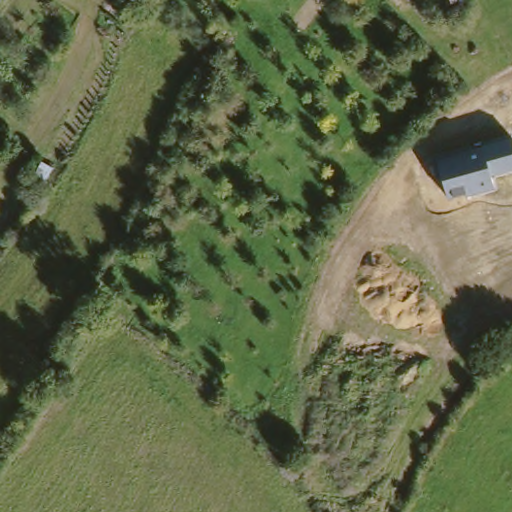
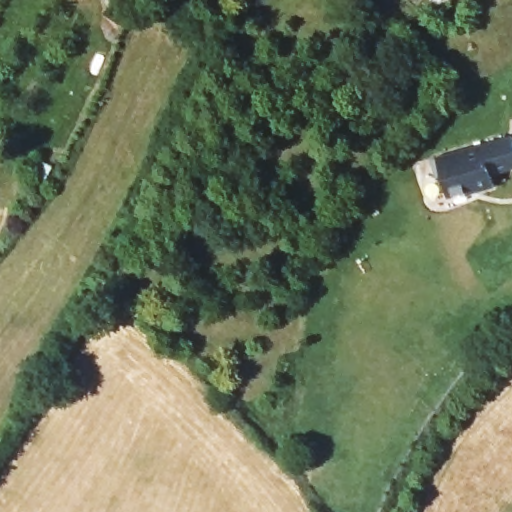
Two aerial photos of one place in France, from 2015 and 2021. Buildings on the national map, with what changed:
unchanged [(466,192),(448,197),(435,159),(512,136),(512,170),(491,177),(494,188),(467,195),(466,192)]

